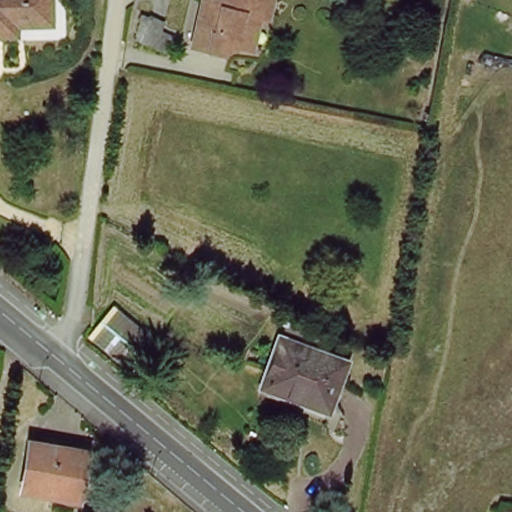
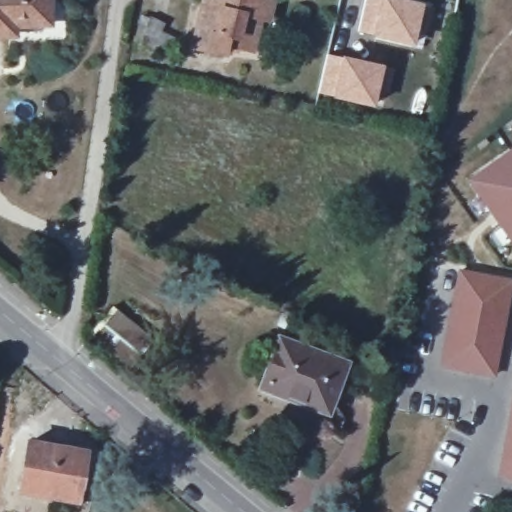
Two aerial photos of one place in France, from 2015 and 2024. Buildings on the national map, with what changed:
unchanged [(0,31),(0,0),(54,0),(55,16),(55,30),(14,31),(0,31)]
unchanged [(243,47),(217,42),(216,49),(187,44),(195,0),(265,0),(260,17),(250,16),(243,47)]
new [(398,0),(432,7),(423,45),(359,32),(365,0),(398,0)]
new [(391,69),(384,108),(319,93),(327,54),(391,69)]
new [(512,136),(512,248),(459,171),(512,136)]
new [(511,275),(497,374),(439,368),(455,268),(511,275)]
unchanged [(143,358),(109,354),(87,337),(114,300),(157,335),(143,358)]
unchanged [(264,384),(283,337),(348,360),(331,406),(264,384)]
new [(498,475),(512,385),(512,478),(498,475)]
unchanged [(83,446),(73,498),(23,489),(29,436),(83,446)]

